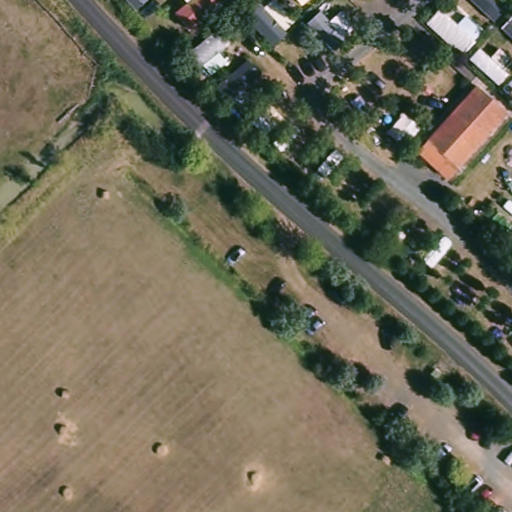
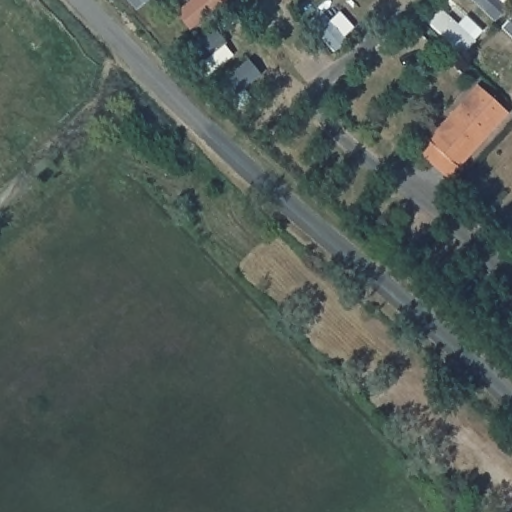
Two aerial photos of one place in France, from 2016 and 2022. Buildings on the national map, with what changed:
unchanged [(454,186),(413,155),(473,87),(510,116),(454,186)]

